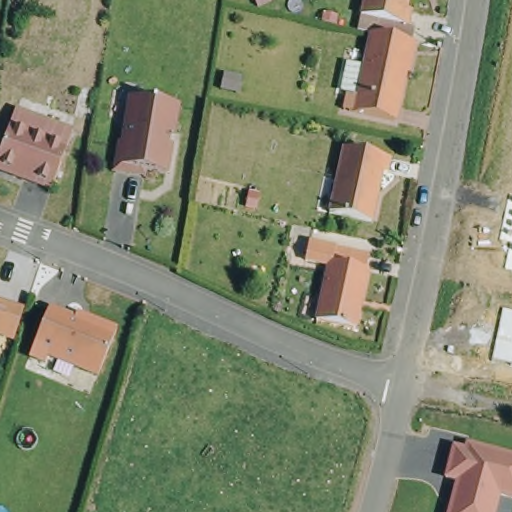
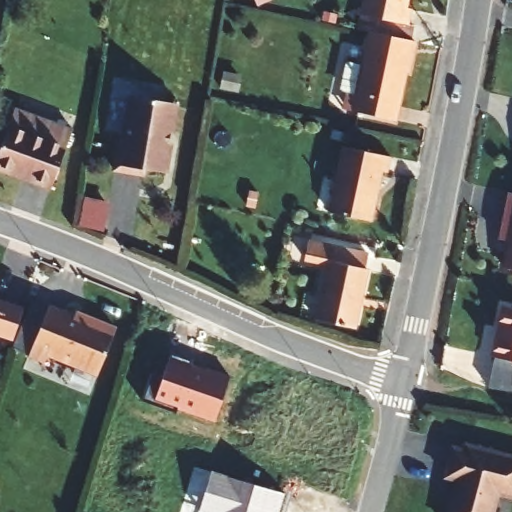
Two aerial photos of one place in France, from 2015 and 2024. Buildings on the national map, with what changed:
unchanged [(362,32),(366,0),(410,0),(410,3),(416,7),(414,19),(401,18),(399,38),(373,34),(362,32)]
unchanged [(419,58),(412,57),(404,120),(353,113),(354,95),(347,94),(352,58),(369,59),(373,34),(399,38),(421,41),(419,58)]
unchanged [(174,104),(170,131),(167,133),(166,143),(168,146),(163,173),(142,170),(141,175),(112,171),(116,142),(120,142),(127,96),(174,104)]
unchanged [(72,130),(49,189),(0,170),(0,144),(14,108),(72,130)]
unchanged [(390,172),(380,171),(373,219),(335,213),(344,147),(392,154),(390,172)]
unchanged [(506,268),(511,241),(500,238),(510,193),(512,194),(512,270),(506,268)]
unchanged [(358,331),(323,325),(331,253),(369,257),(358,331)]
unchanged [(11,338),(0,335),(0,298),(22,305),(11,338)]
unchanged [(495,357),(506,305),(512,306),(512,362),(495,357)]
unchanged [(47,362),(45,368),(28,362),(44,310),(91,327),(93,322),(114,331),(99,379),(47,362)]
new [(214,421),(177,408),(175,412),(143,399),(153,371),(161,374),(169,355),(230,376),(214,421)]
unchanged [(501,497),(496,512),(447,512),(455,481),(445,478),(453,445),(465,448),(467,442),(512,454),(512,500),(501,497)]
new [(277,512),(200,512),(198,511),(211,471),(284,492),(277,512)]

